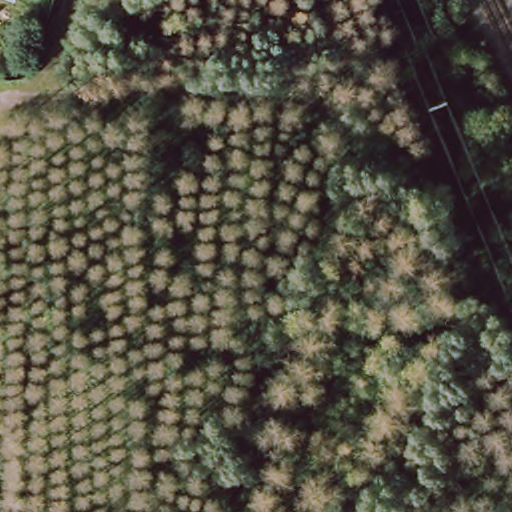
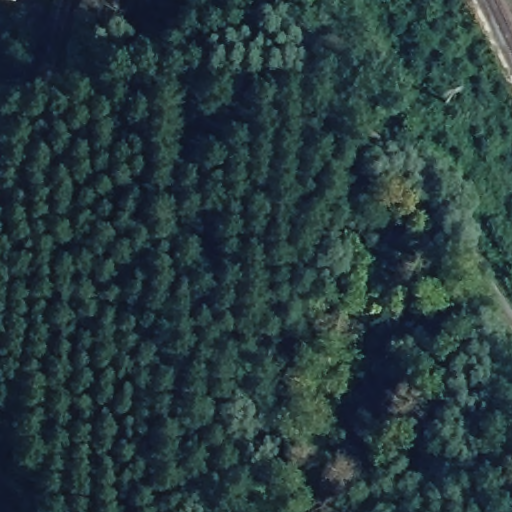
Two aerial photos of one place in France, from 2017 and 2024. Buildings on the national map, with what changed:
unchanged [(16,10),(0,4),(0,0),(20,0),(16,10)]

